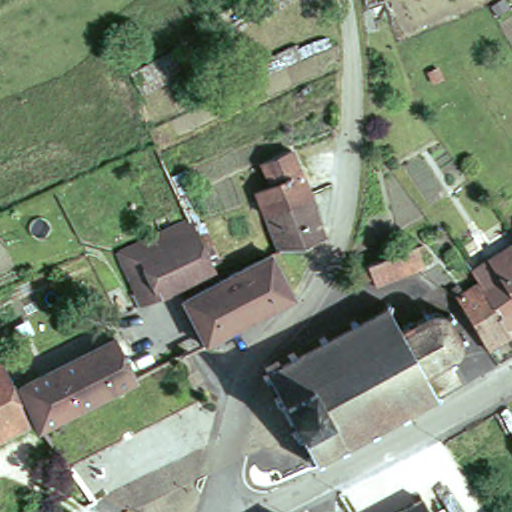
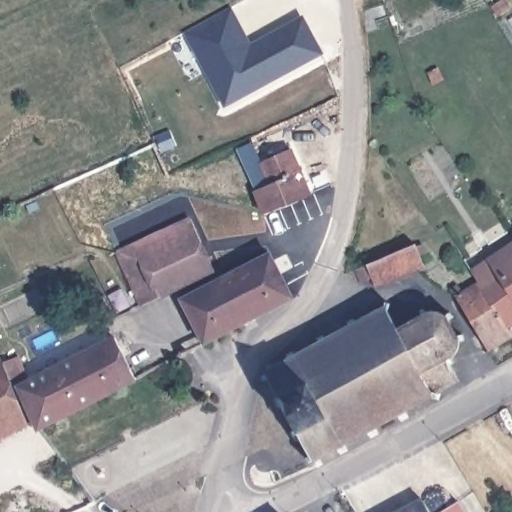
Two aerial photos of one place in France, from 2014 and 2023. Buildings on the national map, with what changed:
new [(233,8),(254,41),(302,15),(320,51),(224,108),(186,32),(233,8)]
unchanged [(275,188),(266,166),(295,151),(315,198),(272,223),(263,193),(275,188)]
demolished [(272,223),(315,198),(331,238),(283,256),(272,223)]
unchanged [(220,271),(186,287),(150,304),(126,252),(198,220),(201,228),(219,268),(220,271)]
unchanged [(419,249),(420,251),(427,248),(432,256),(425,260),(430,268),(423,271),(380,290),(377,282),(364,286),(358,271),(395,258),(419,249)]
unchanged [(480,289),(475,282),(472,277),(512,253),(512,330),(508,333),(480,289)]
unchanged [(275,259),(298,302),(209,347),(188,300),(192,299),(275,259)]
unchanged [(510,335),(512,339),(512,344),(490,357),(457,302),(480,289),(508,333),(510,335)]
unchanged [(281,364),(284,368),(294,362),(292,358),(299,354),(302,359),(325,347),(322,341),(330,337),(333,342),(357,330),(354,325),(360,321),(363,327),(386,314),(392,305),(396,307),(393,313),(403,331),(427,320),(425,315),(432,311),(435,317),(443,313),(453,317),(458,314),(462,320),(455,324),(463,339),(470,334),(473,341),(468,344),(466,350),(460,353),(464,361),(458,365),(464,380),(457,384),(454,385),(444,391),(449,395),(446,401),(433,397),(412,409),(416,416),(406,421),(402,414),(381,426),(385,433),(376,438),(372,430),(350,443),(354,449),(345,455),(341,447),(330,454),(334,461),(324,466),(321,460),(314,464),(312,459),(318,455),(308,438),(302,441),(297,433),(304,429),(289,403),(283,406),(278,399),(285,395),(274,376),(269,379),(267,375),(272,372),(271,369),(281,364)]
unchanged [(34,420),(20,390),(107,346),(104,340),(112,336),(115,343),(118,341),(136,381),(41,429),(34,420)]
unchanged [(6,362),(20,390),(34,420),(0,437),(0,365),(6,362)]
unchanged [(436,512),(407,512),(429,499),(436,512)]
new [(464,512),(441,512),(458,501),(464,512)]

